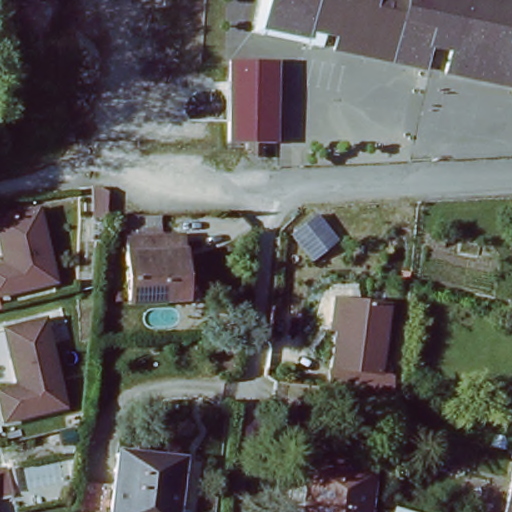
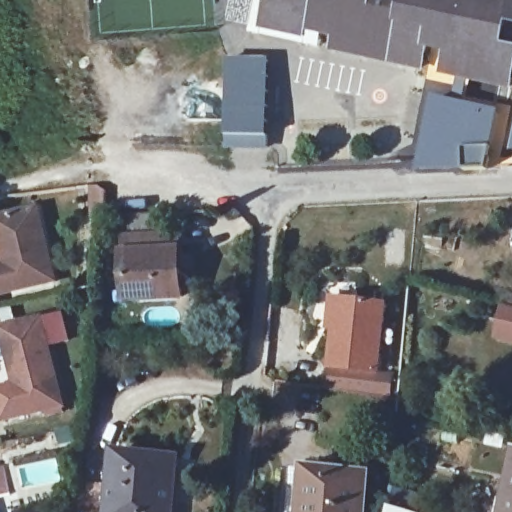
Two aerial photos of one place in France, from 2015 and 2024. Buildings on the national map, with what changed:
unchanged [(305,24),(303,34),(263,24),(269,0),(512,0),(512,37),(503,34),(501,45),(512,48),(512,85),(511,87),(442,70),(448,41),(427,36),(421,66),(390,58),(365,52),(333,44),(335,31),(305,24)]
unchanged [(280,138),(267,139),(267,149),(250,150),(249,139),(227,141),(222,58),(272,55),(280,138)]
new [(434,95),(510,106),(503,124),(502,127),(500,127),(490,169),(419,172),(434,95)]
new [(512,139),(512,152),(509,152),(512,139)]
unchanged [(57,279),(0,291),(0,264),(9,262),(0,222),(0,215),(4,214),(40,206),(57,279)]
unchanged [(172,301),(120,305),(115,246),(167,242),(172,301)]
new [(501,306),(512,309),(512,342),(494,337),(501,306)]
unchanged [(395,322),(382,390),(335,380),(347,312),(395,322)]
unchanged [(65,404),(5,419),(0,398),(0,387),(18,383),(12,357),(5,326),(13,324),(44,317),(65,404)]
unchanged [(170,512),(105,512),(112,457),(177,465),(170,512)]
unchanged [(512,461),(512,512),(497,512),(512,461)]
unchanged [(369,512),(293,512),(298,465),(373,474),(369,512)]

